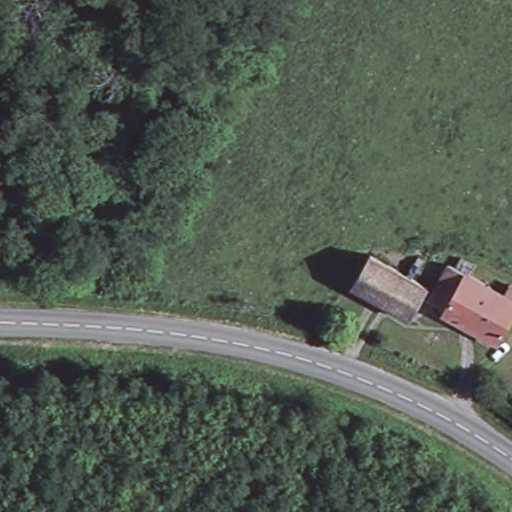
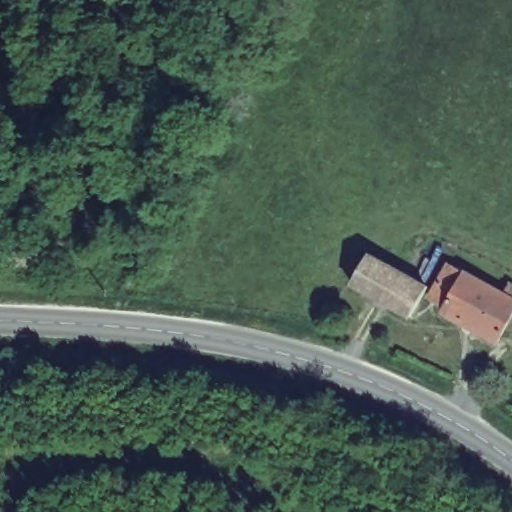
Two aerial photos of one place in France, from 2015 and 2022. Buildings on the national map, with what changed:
unchanged [(349,286),(370,250),(430,281),(414,320),(349,286)]
unchanged [(471,270),(497,284),(512,292),(512,322),(500,346),(442,313),(430,297),(450,260),(471,270)]

